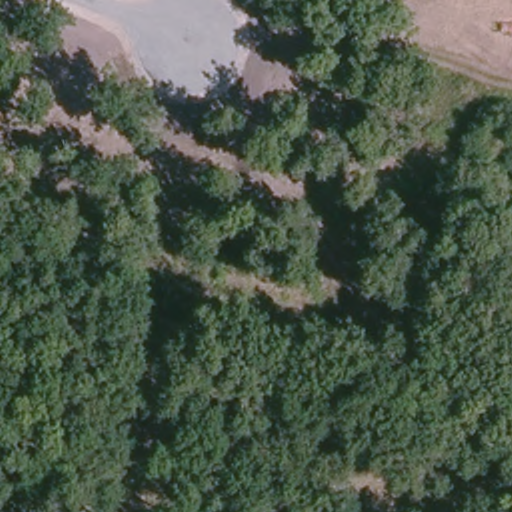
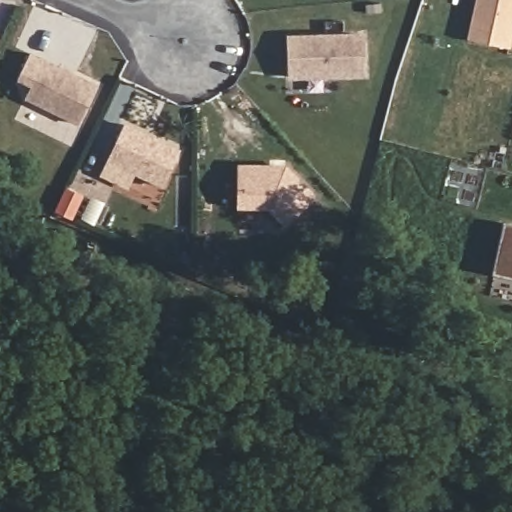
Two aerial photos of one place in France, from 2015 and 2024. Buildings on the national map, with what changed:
new [(512,50),(472,40),(482,0),(512,0),(512,50)]
new [(286,35),(364,32),(365,76),(288,80),(286,35)]
new [(30,87),(16,80),(30,51),(97,85),(79,125),(24,99),(30,87)]
new [(123,122),(179,150),(161,187),(107,163),(123,122)]
new [(238,163),(287,164),(317,195),(284,227),(267,209),(237,209),(238,163)]
new [(503,224),(512,226),(512,276),(493,272),(503,224)]

